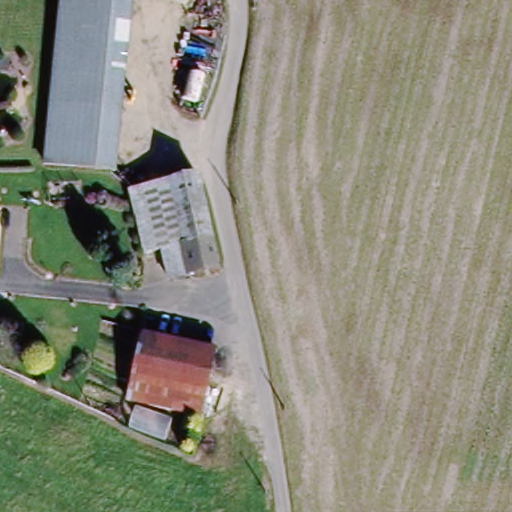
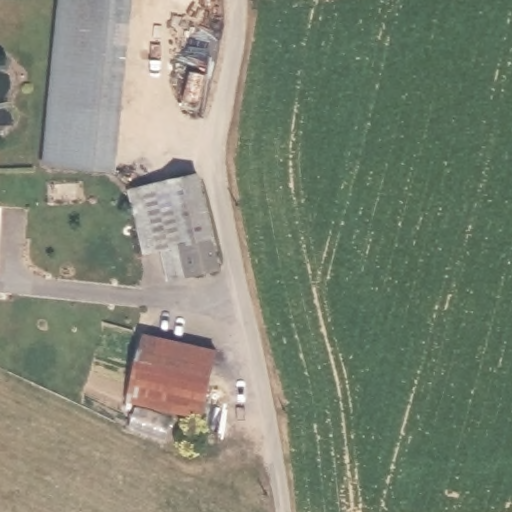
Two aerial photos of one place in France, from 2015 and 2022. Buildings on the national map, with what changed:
unchanged [(115,175),(40,169),(58,0),(131,0),(115,175)]
unchanged [(138,193),(204,178),(210,221),(224,268),(190,277),(184,249),(153,256),(138,193)]
unchanged [(206,402),(129,392),(138,324),(215,334),(206,402)]

